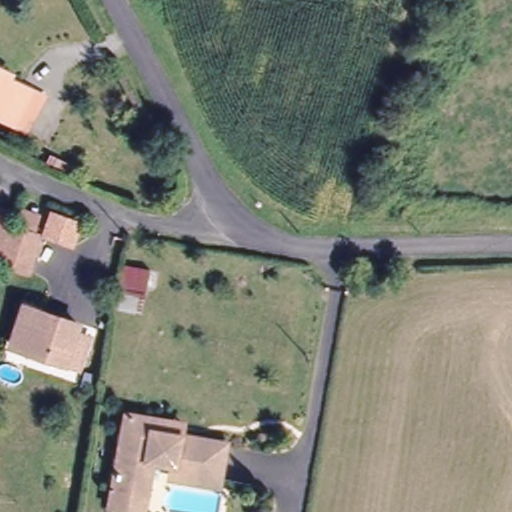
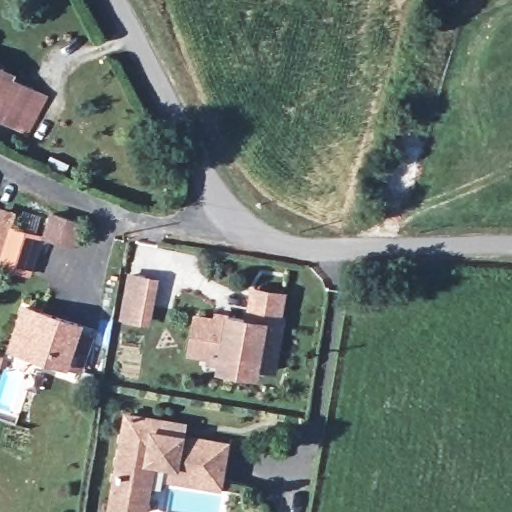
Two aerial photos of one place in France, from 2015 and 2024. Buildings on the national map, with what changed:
unchanged [(0,116),(0,66),(3,67),(9,71),(6,75),(33,90),(44,96),(24,130),(14,124),(0,116)]
unchanged [(0,267),(0,216),(14,220),(19,207),(41,214),(38,224),(43,226),(50,210),(83,221),(72,249),(39,239),(34,255),(26,276),(0,267)]
new [(158,276),(149,326),(121,321),(127,271),(158,276)]
new [(194,312),(224,317),(225,312),(244,314),(251,284),(287,290),(282,321),(285,322),(276,374),(259,372),(259,377),(216,370),(217,361),(187,354),(194,312)]
unchanged [(77,324),(75,334),(91,337),(85,369),(15,354),(24,312),(77,324)]
unchanged [(113,503),(116,488),(130,410),(164,417),(185,421),(183,431),(228,440),(222,478),(197,474),(198,471),(176,467),(177,461),(156,457),(150,493),(146,509),(113,503)]

